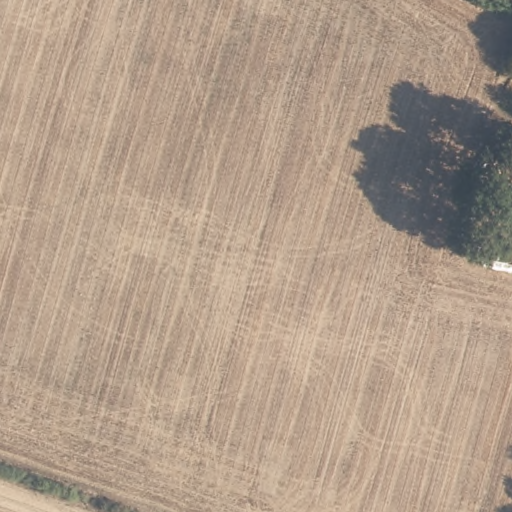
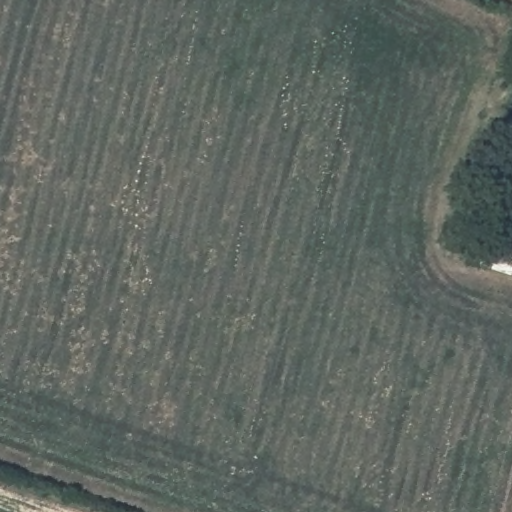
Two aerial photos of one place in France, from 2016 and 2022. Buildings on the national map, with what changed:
[]

